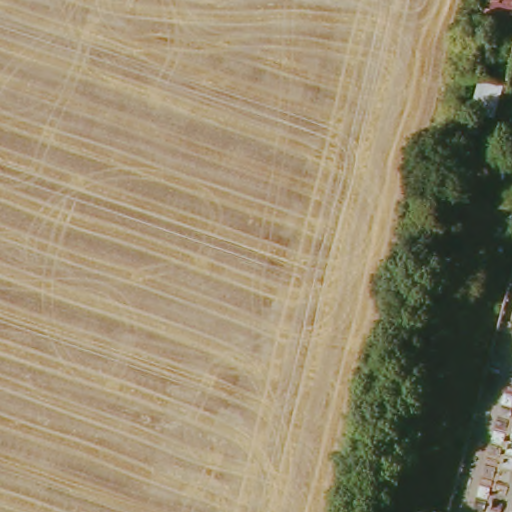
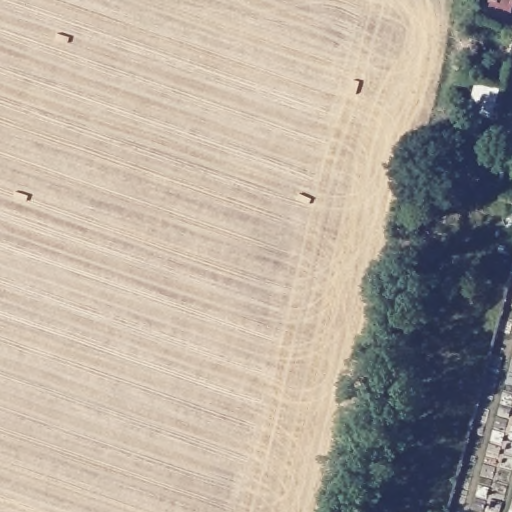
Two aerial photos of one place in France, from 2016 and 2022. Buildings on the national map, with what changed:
unchanged [(507,119),(479,120),(481,81),(508,82),(507,119)]
unchanged [(486,131),(483,144),(480,144),(474,164),(453,159),(459,141),(457,140),(462,125),(486,131)]

